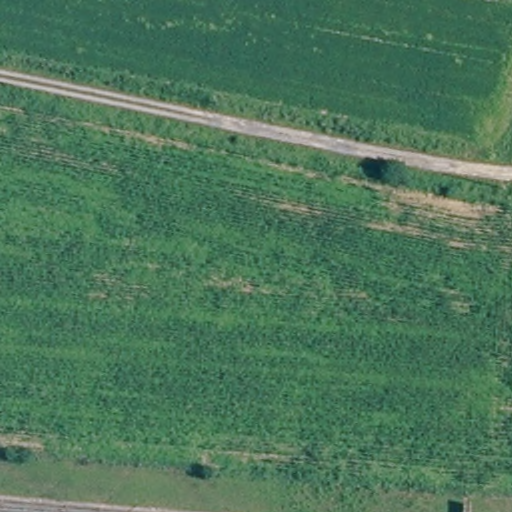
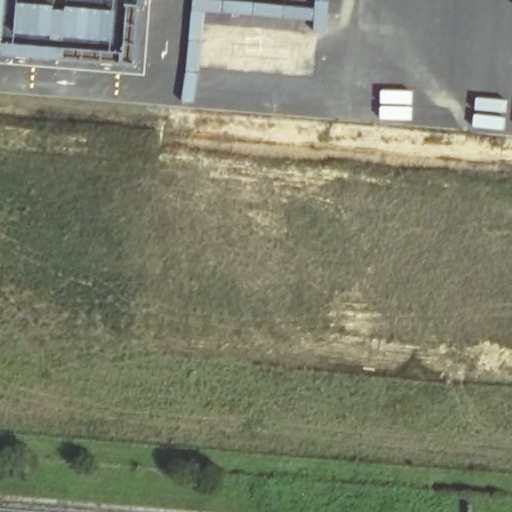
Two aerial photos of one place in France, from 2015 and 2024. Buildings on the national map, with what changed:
new [(119,0),(119,5),(125,5),(125,15),(130,16),(126,58),(124,70),(0,58),(0,0),(119,0)]
new [(143,0),(141,38),(133,36),(129,59),(126,58),(130,16),(125,15),(125,5),(119,5),(119,0),(143,0)]

